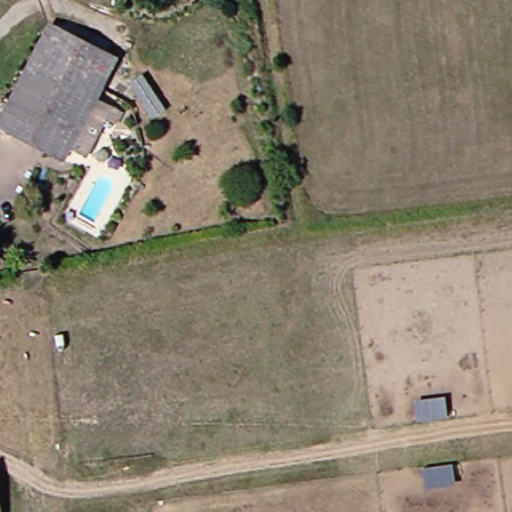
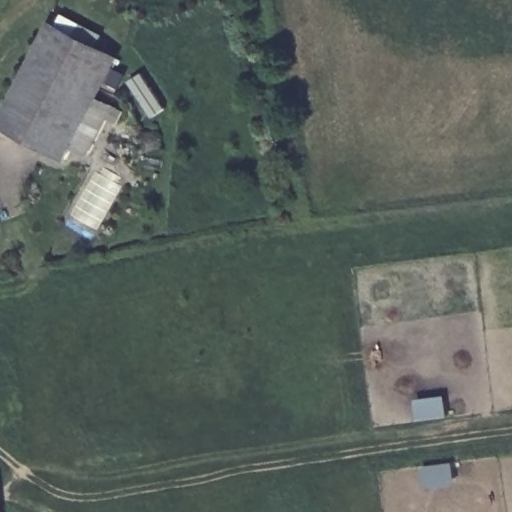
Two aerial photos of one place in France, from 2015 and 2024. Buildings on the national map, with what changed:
unchanged [(83,156),(65,146),(58,159),(12,134),(0,128),(0,108),(44,26),(111,62),(81,116),(100,127),(83,156)]

